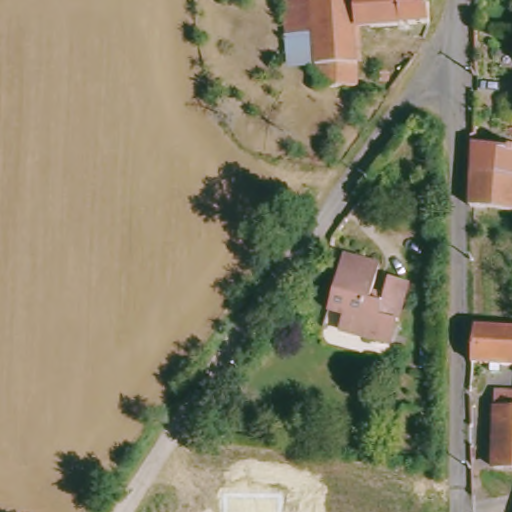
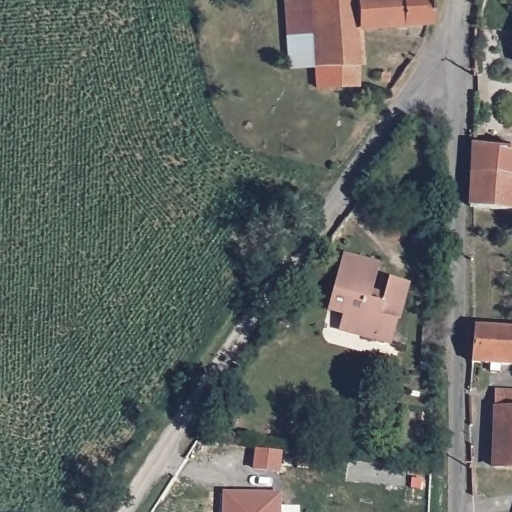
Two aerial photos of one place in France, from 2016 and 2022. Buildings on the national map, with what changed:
unchanged [(311,58),(285,60),(280,0),(307,0),(311,58)]
unchanged [(354,22),(354,52),(351,81),(313,83),(311,58),(307,0),(424,0),(425,18),(354,22)]
unchanged [(512,144),(512,174),(468,168),(470,137),(511,146),(512,144)]
unchanged [(512,207),(470,202),(465,201),(468,168),(512,174),(512,207)]
unchanged [(375,265),(367,293),(380,297),(385,278),(404,283),(386,346),(374,342),(374,340),(335,329),(340,313),(324,309),(339,255),(375,265)]
unchanged [(512,366),(467,361),(470,325),(512,328),(512,366)]
unchanged [(492,391),(512,392),(512,468),(488,467),(492,391)]
new [(281,495),(280,512),(224,512),(225,492),(281,495)]

